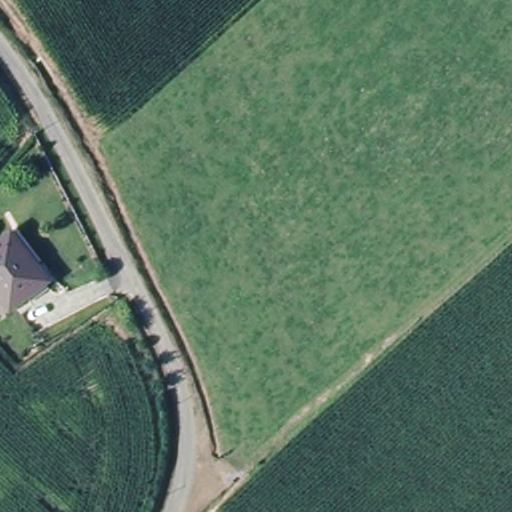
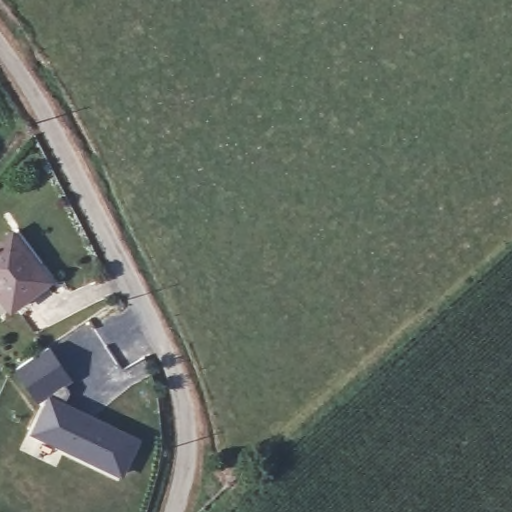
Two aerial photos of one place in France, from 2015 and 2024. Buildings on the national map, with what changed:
unchanged [(16,225),(59,280),(12,313),(0,297),(0,236),(16,225)]
new [(15,368),(48,345),(73,380),(63,384),(69,392),(65,402),(142,438),(122,481),(28,437),(47,401),(45,397),(38,402),(15,368)]

